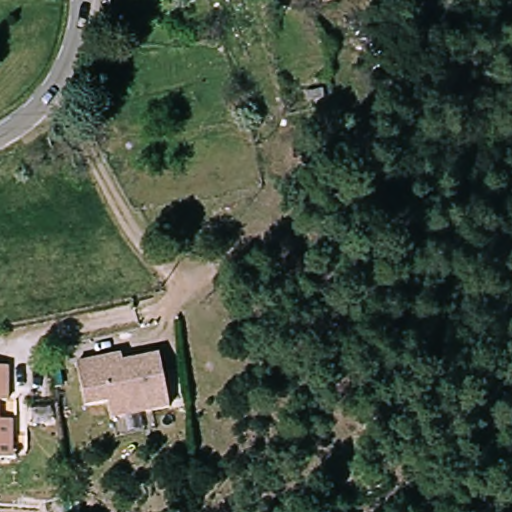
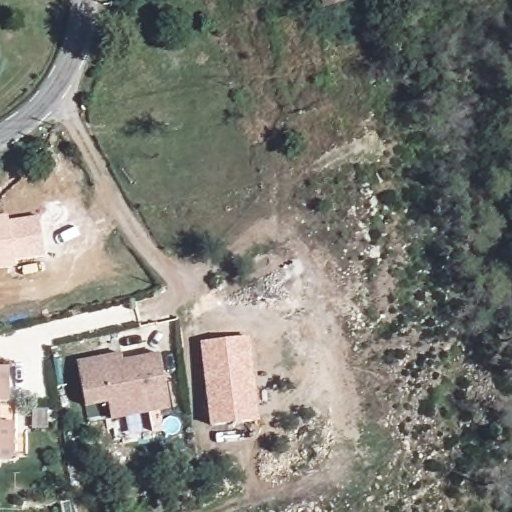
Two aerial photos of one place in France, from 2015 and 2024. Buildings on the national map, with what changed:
unchanged [(335,0),(354,0),(336,3),(335,0)]
new [(8,214),(10,219),(38,214),(45,256),(15,260),(16,266),(0,269),(0,215),(8,214)]
new [(250,336),(260,421),(211,426),(201,341),(250,336)]
unchanged [(125,351),(126,359),(162,351),(174,406),(116,418),(112,401),(89,405),(80,360),(125,351)]
unchanged [(0,465),(0,368),(13,369),(11,403),(21,405),(17,443),(15,466),(0,465)]

